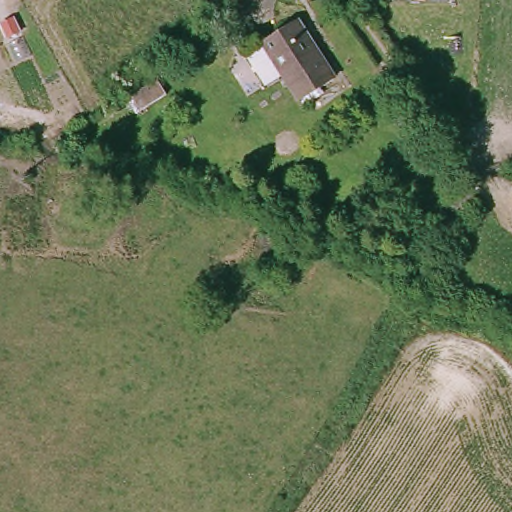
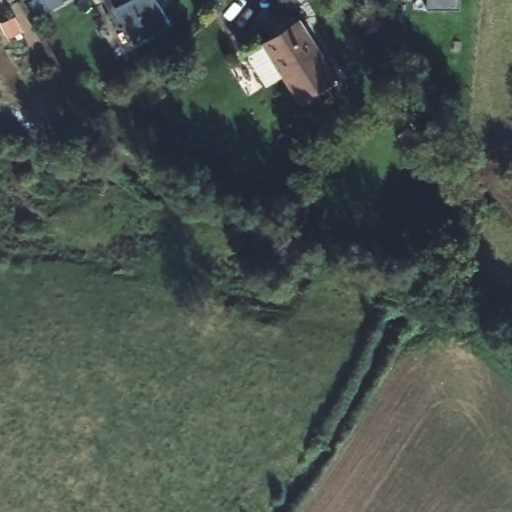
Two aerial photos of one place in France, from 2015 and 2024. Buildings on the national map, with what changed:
new [(163,2),(161,3),(171,20),(134,40),(125,23),(119,26),(106,0),(163,0),(163,2)]
unchanged [(299,23),(336,85),(299,107),(261,45),(299,23)]

